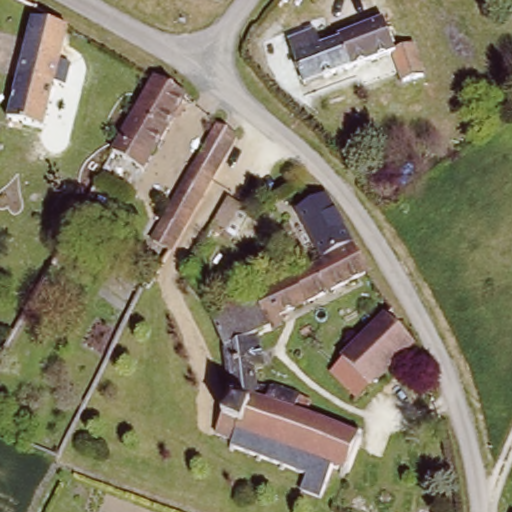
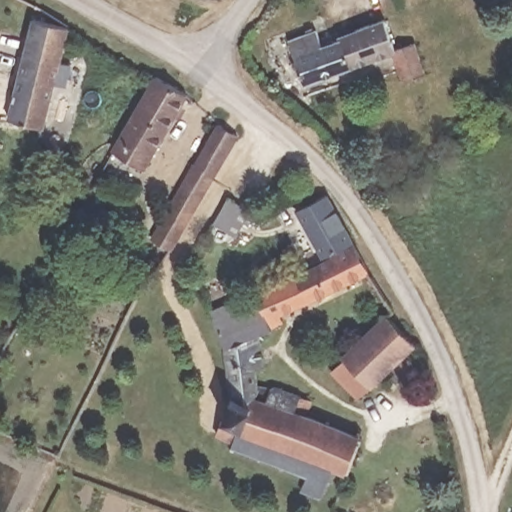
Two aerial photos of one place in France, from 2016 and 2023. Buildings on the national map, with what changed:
unchanged [(398,79),(389,52),(302,84),(285,35),(314,25),(319,35),(329,31),(333,41),(341,37),(339,30),(381,16),(394,46),(411,40),(422,70),(398,79)]
unchanged [(70,30),(44,129),(8,121),(25,45),(42,19),(70,30)]
unchanged [(157,81),(186,100),(143,170),(111,151),(157,81)]
unchanged [(179,237),(178,239),(158,226),(192,170),(194,172),(218,134),(236,145),(179,237)]
unchanged [(354,245),(325,261),(302,216),(316,206),(329,199),(354,245)]
unchanged [(243,215),(228,240),(206,226),(221,200),(243,215)]
unchanged [(370,274),(347,286),(309,307),(279,318),(283,326),(271,331),(256,296),(311,275),(357,250),(370,274)]
unchanged [(211,308),(254,292),(256,296),(271,331),(272,334),(259,337),(227,348),(211,308)]
unchanged [(356,401),(331,373),(376,331),(389,320),(417,346),(356,401)]
unchanged [(227,348),(259,337),(271,367),(261,370),(266,390),(234,395),(227,348)]
unchanged [(334,472),(325,501),(304,495),(309,479),(231,448),(233,443),(219,437),(234,395),(266,390),(277,388),(316,403),(311,417),(363,436),(349,477),(334,472)]

